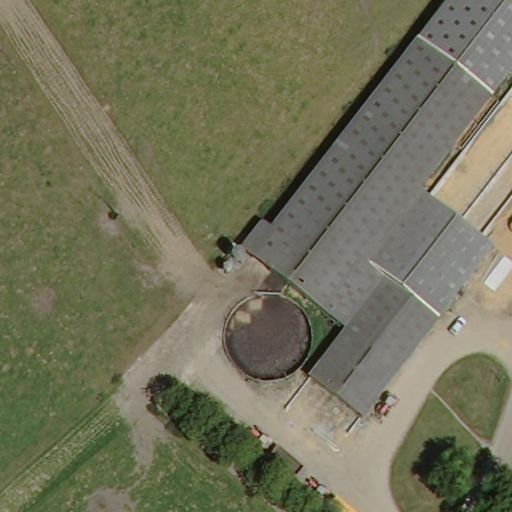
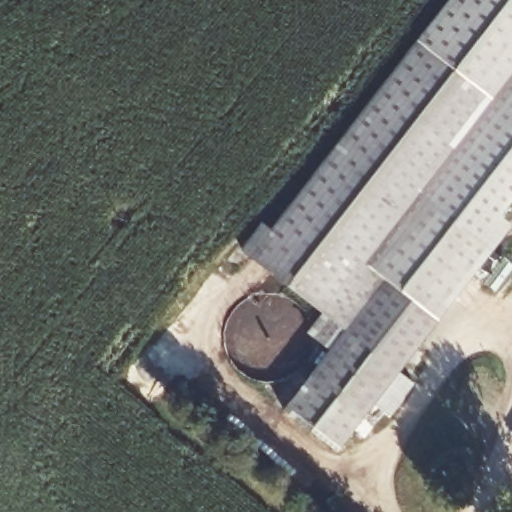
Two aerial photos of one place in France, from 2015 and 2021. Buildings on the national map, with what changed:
unchanged [(264,228),(273,235),(419,44),(453,0),(512,0),(512,72),(491,99),(499,105),(462,153),(454,147),(419,193),(364,264),(387,281),(348,332),(244,254),(264,228)]
new [(512,224),(512,226),(493,250),(419,193),(454,147),(462,153),(499,105),(491,99),(512,72),(512,199),(500,215),(512,224)]
unchanged [(348,332),(387,281),(364,264),(419,193),(493,250),(363,420),(312,380),(348,332)]
new [(338,451),(283,409),(330,350),(307,332),(322,312),(348,332),(312,380),(362,419),(338,451)]

